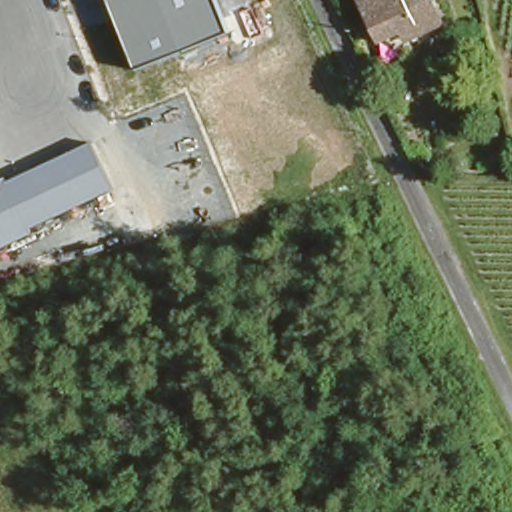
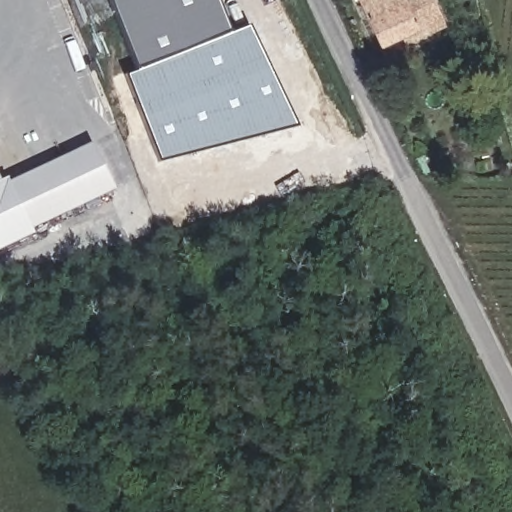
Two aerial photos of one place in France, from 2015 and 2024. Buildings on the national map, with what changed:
unchanged [(110,0),(218,0),(231,33),(137,70),(110,0)]
unchanged [(358,0),(429,0),(435,15),(378,40),(358,0)]
new [(137,70),(231,33),(248,26),(298,126),(159,163),(125,76),(137,70)]
unchanged [(8,176),(11,181),(92,142),(113,190),(31,227),(34,235),(0,250),(0,180),(8,176)]

